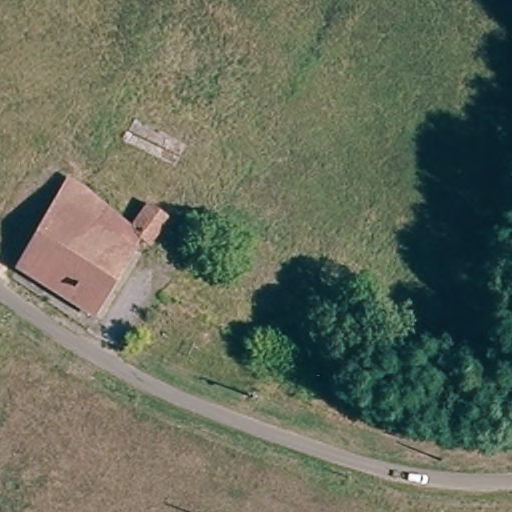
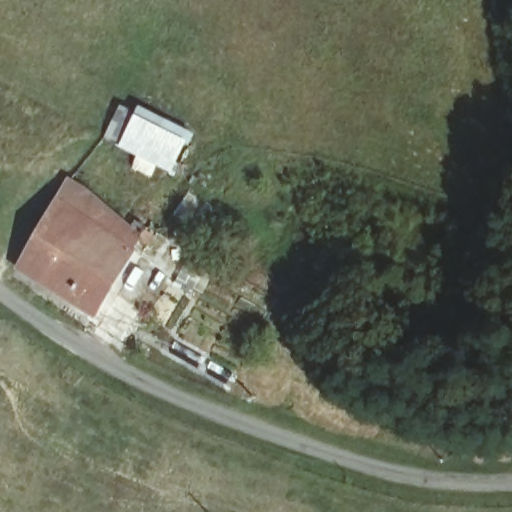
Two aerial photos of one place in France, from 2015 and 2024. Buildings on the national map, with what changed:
new [(137,113),(140,108),(195,136),(190,145),(187,143),(172,171),(118,146),(104,139),(121,105),(137,113)]
unchanged [(72,183),(90,195),(130,229),(149,203),(170,218),(151,245),(141,241),(95,314),(25,271),(67,193),(72,183)]

